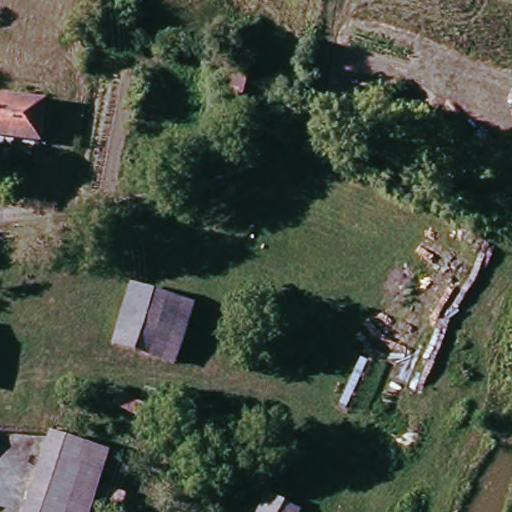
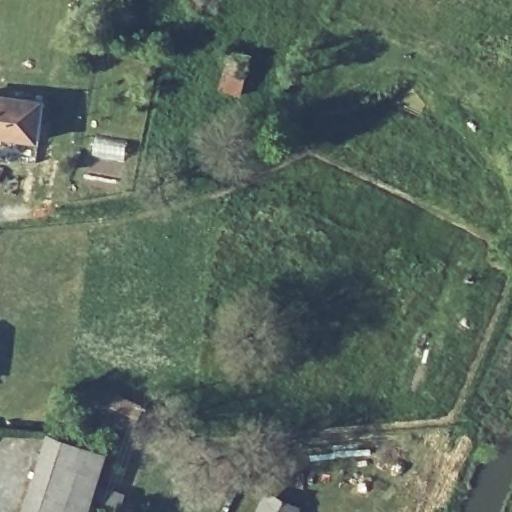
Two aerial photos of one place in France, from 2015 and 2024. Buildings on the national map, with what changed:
unchanged [(37,140),(0,135),(0,95),(42,101),(37,140)]
demolished [(111,345),(129,285),(191,304),(170,366),(111,345)]
unchanged [(51,434),(106,455),(97,486),(122,496),(118,512),(91,504),(88,512),(56,512),(75,462),(46,452),(51,434)]
unchanged [(46,452),(75,462),(56,512),(26,512),(46,452)]
unchanged [(264,500),(291,512),(258,512),(264,500)]

